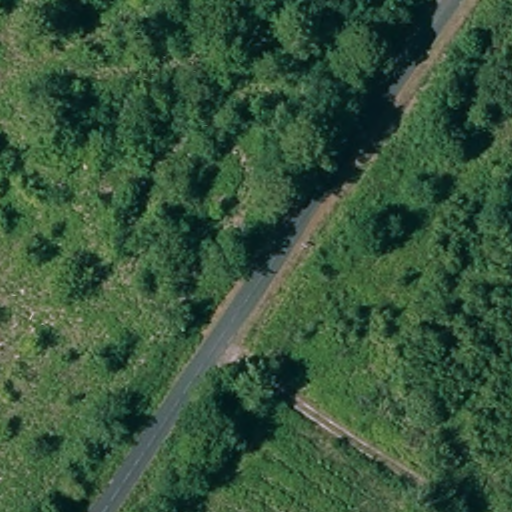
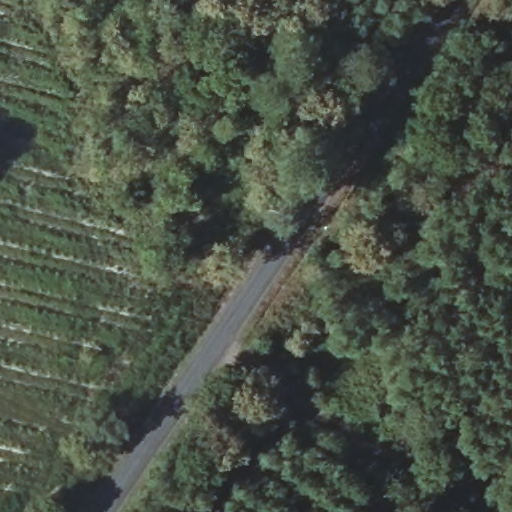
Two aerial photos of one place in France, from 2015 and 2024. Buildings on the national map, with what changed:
[]

